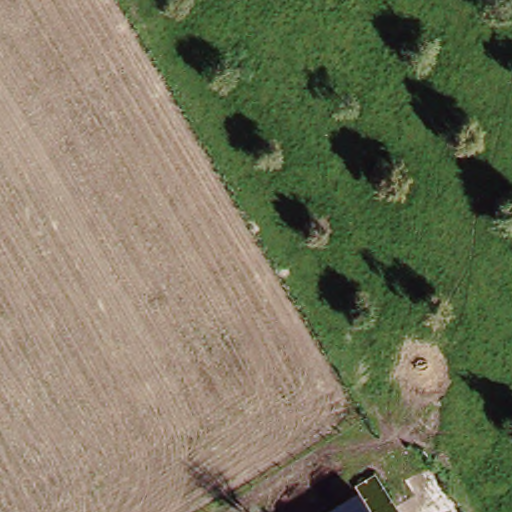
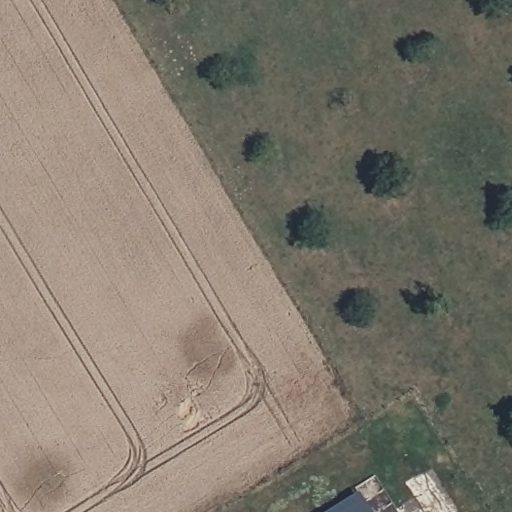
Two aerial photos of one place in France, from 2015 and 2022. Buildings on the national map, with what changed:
unchanged [(363,507),(366,512),(352,512),(363,507)]

